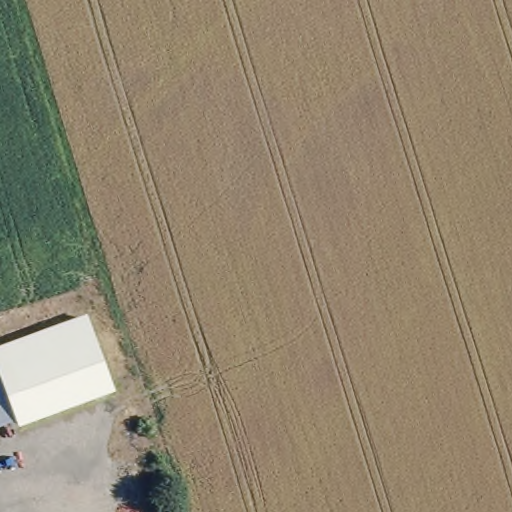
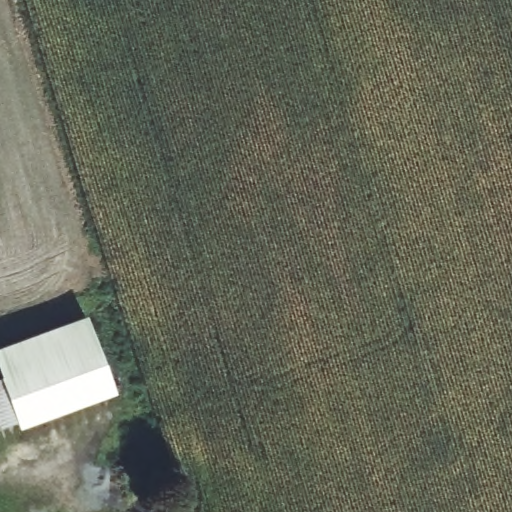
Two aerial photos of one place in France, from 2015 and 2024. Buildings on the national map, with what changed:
unchanged [(90,333),(113,400),(0,440),(0,367),(90,333)]

